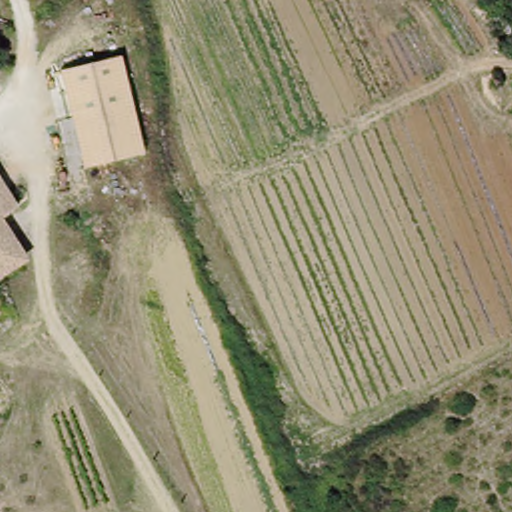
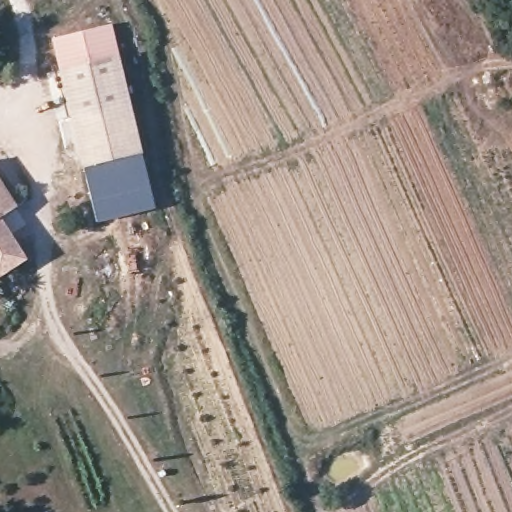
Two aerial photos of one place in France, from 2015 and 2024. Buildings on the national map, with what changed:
new [(138,152),(118,58),(60,72),(51,39),(112,23),(120,57),(156,209),(97,222),(85,171),(138,152)]
unchanged [(56,73),(118,58),(138,152),(80,173),(56,73)]
unchanged [(5,220),(28,258),(0,275),(0,166),(25,206),(5,220)]

